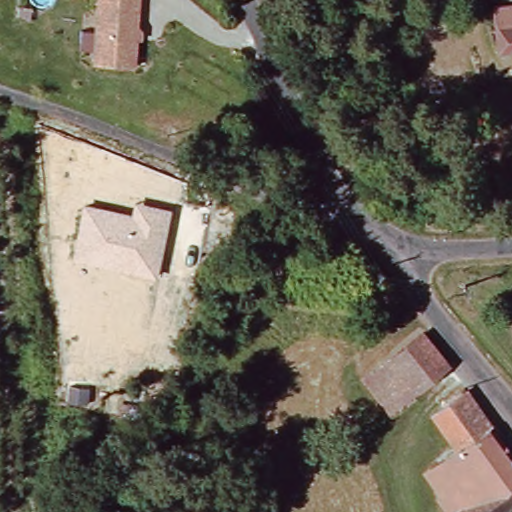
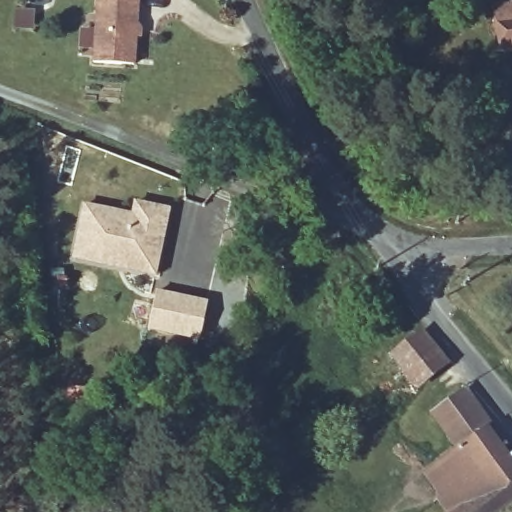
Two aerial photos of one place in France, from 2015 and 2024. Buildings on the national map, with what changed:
unchanged [(49,3),(47,0),(60,0),(56,4),(49,3)]
unchanged [(97,67),(99,0),(139,0),(138,67),(97,67)]
unchanged [(512,6),(512,53),(498,55),(494,8),(512,6)]
unchanged [(156,276),(73,258),(84,203),(132,212),(134,202),(170,210),(156,276)]
new [(158,291),(208,302),(200,338),(150,327),(158,291)]
unchanged [(446,367),(387,413),(362,383),(421,337),(446,367)]
unchanged [(512,507),(506,512),(431,512),(430,510),(437,503),(420,478),(452,453),(427,422),(460,400),(512,469),(512,507)]

